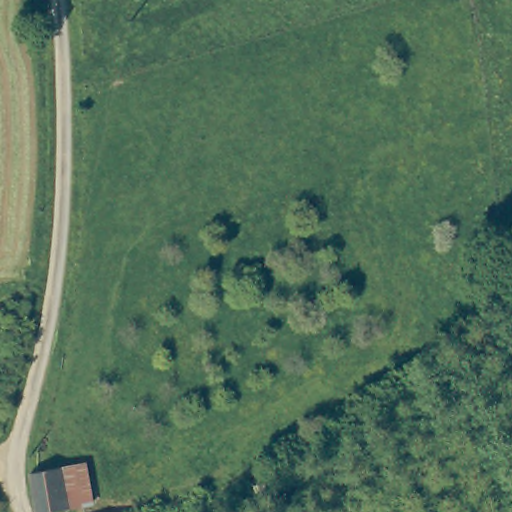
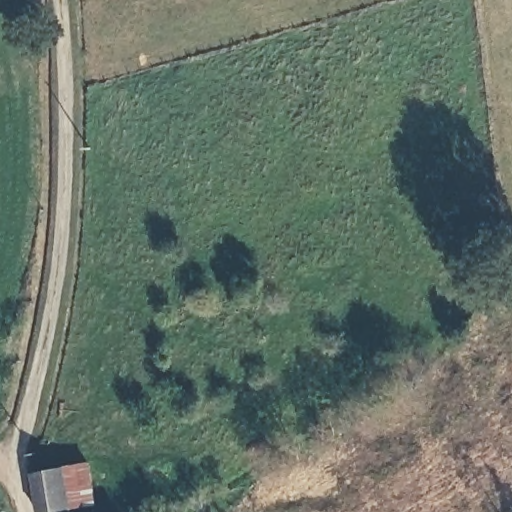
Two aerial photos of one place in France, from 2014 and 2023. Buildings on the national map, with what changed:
unchanged [(86,462),(95,503),(69,508),(60,467),(86,462)]
unchanged [(30,473),(60,467),(69,508),(51,512),(38,512),(30,473)]

